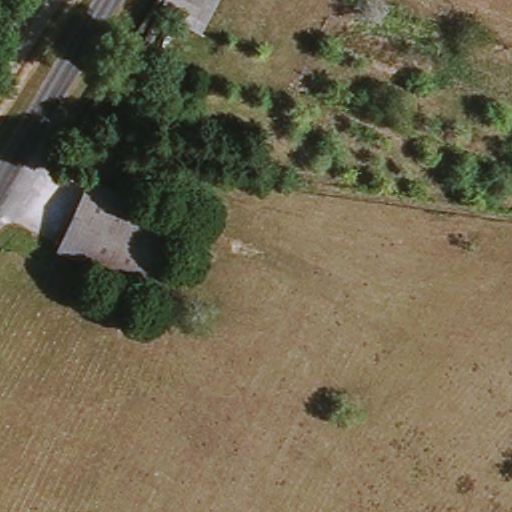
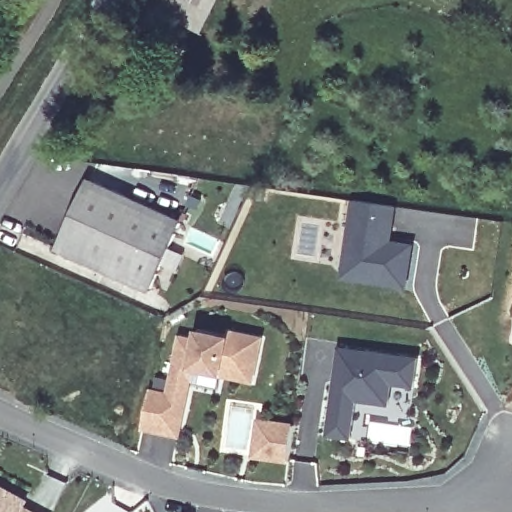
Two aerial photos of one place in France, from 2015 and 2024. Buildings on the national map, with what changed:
unchanged [(166,0),(204,0),(196,16),(166,0)]
unchanged [(151,290),(59,250),(90,180),(181,220),(151,290)]
new [(355,200),(395,205),(392,222),(390,242),(413,246),(407,286),(360,280),(344,277),(347,252),(355,200)]
new [(151,390),(170,395),(182,337),(198,341),(200,332),(229,338),(230,332),(263,338),(254,381),(194,368),(180,435),(143,427),(151,390)]
new [(336,381),(340,381),(342,369),(338,368),(341,348),(420,358),(416,386),(394,383),(391,404),(358,400),(352,438),(329,435),(336,381)]
new [(261,421),(279,423),(295,425),(291,460),(256,456),(258,440),(261,421)]
new [(28,500),(25,506),(35,512),(0,512),(0,485),(28,500)]

